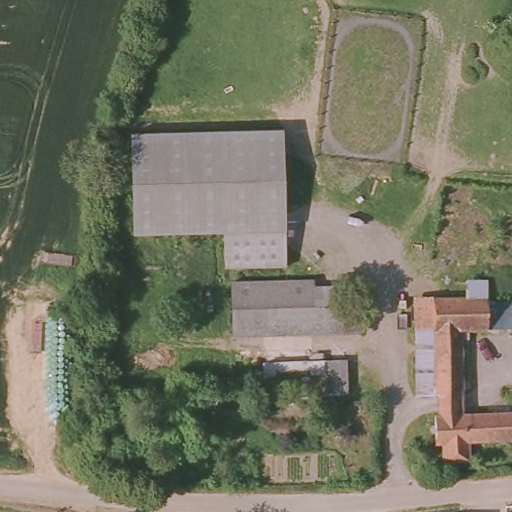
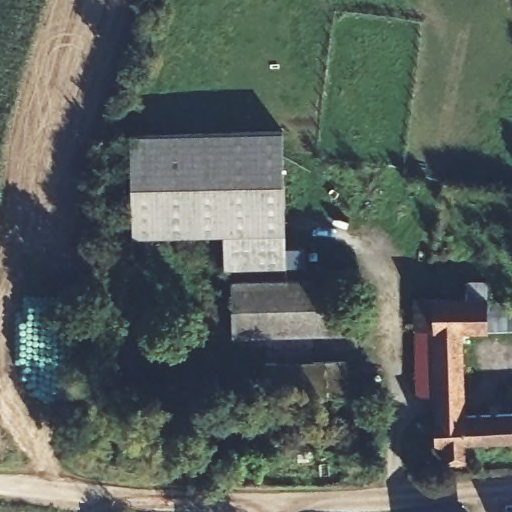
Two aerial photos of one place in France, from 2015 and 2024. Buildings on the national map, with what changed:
unchanged [(285,129),(287,230),(287,266),(225,267),(224,233),(134,235),(131,133),(285,129)]
unchanged [(410,400),(410,343),(409,305),(423,305),(422,287),(482,285),(489,285),(490,295),(512,295),(512,335),(455,337),(456,399),(457,421),(512,419),(512,445),(475,446),(475,466),(443,468),(442,447),(434,447),(433,422),(432,400),(428,400),(410,400)]
unchanged [(315,287),(316,311),(363,310),(363,332),(230,335),(229,289),(315,287)]
unchanged [(349,358),(351,396),(268,400),(264,361),(349,358)]

